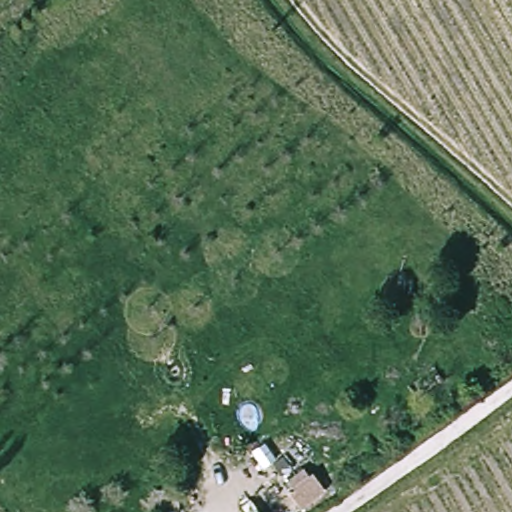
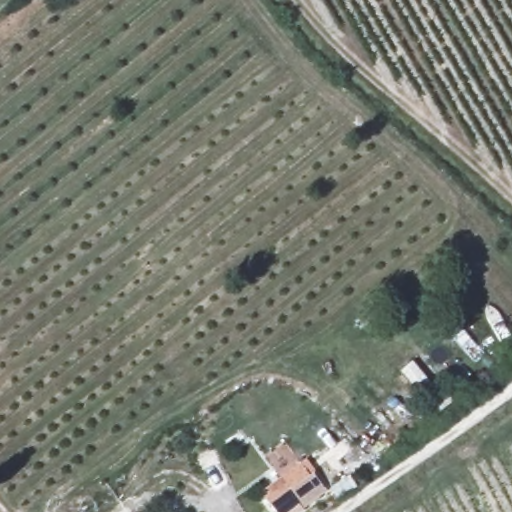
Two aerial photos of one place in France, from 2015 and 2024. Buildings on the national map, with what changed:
unchanged [(303,468),(323,496),(300,512),(294,512),(276,487),(303,468)]

